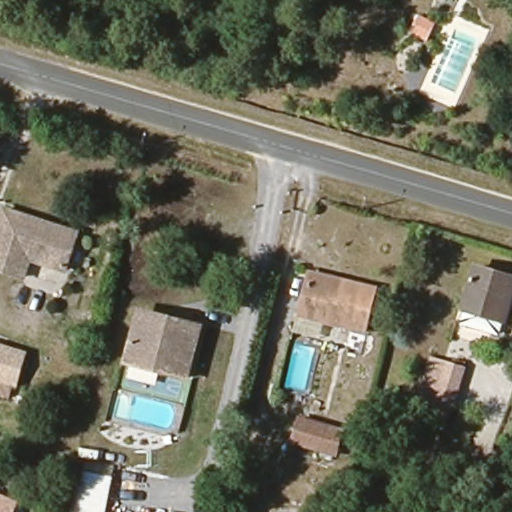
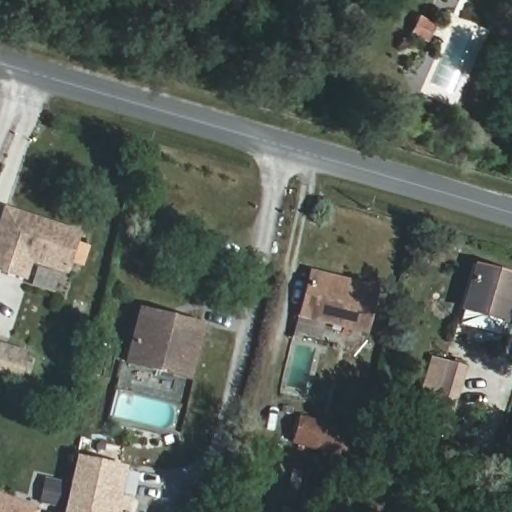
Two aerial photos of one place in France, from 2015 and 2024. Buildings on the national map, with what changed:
unchanged [(32,258),(27,277),(0,270),(0,232),(5,211),(79,231),(68,268),(32,258)]
unchanged [(469,271),(512,282),(502,319),(459,308),(469,271)]
unchanged [(364,329),(299,314),(309,272),(374,287),(364,329)]
unchanged [(136,315),(194,331),(181,378),(124,363),(136,315)]
unchanged [(0,375),(0,345),(22,347),(19,377),(0,375)]
unchanged [(452,399),(420,393),(426,363),(439,366),(458,370),(452,399)]
unchanged [(334,454),(295,444),(301,419),(340,428),(334,454)]
demolished [(112,512),(93,512),(82,509),(94,455),(123,462),(112,512)]
new [(120,468),(112,512),(58,512),(71,458),(120,468)]
unchanged [(0,494),(19,501),(15,512),(0,512),(0,494)]

